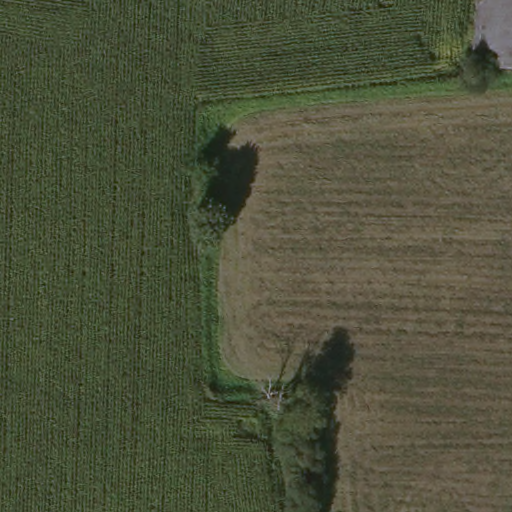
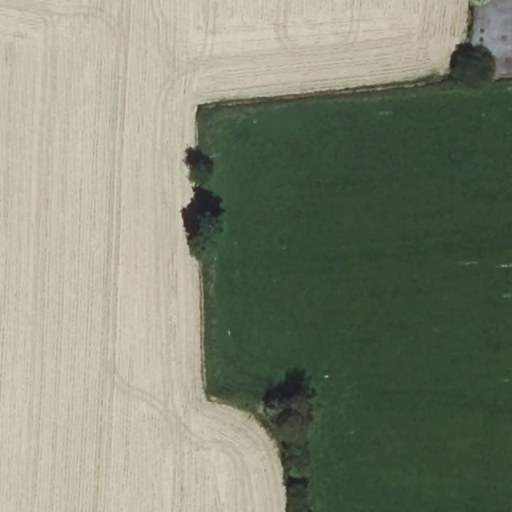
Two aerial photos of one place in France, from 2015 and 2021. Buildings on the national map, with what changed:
unchanged [(512,65),(463,67),(469,0),(512,0),(512,65)]

